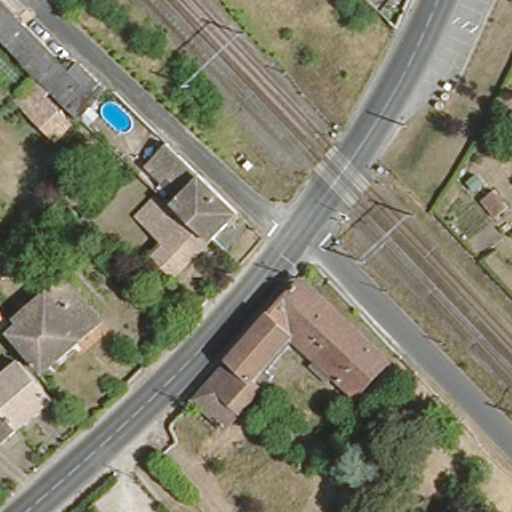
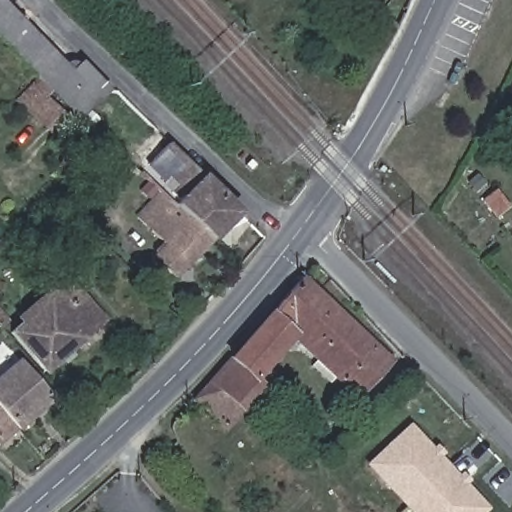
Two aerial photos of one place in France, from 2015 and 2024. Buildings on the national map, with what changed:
unchanged [(94,92),(76,110),(4,35),(0,31),(0,0),(4,0),(11,8),(94,92)]
unchanged [(39,74),(55,91),(46,95),(74,124),(53,144),(14,101),(39,74)]
unchanged [(175,193),(168,185),(174,179),(165,171),(163,174),(148,159),(168,140),(237,211),(212,237),(191,217),(189,219),(169,199),(175,193)]
unchanged [(189,219),(191,217),(212,237),(174,277),(154,258),(153,256),(166,242),(146,224),(140,230),(131,222),(129,220),(159,189),(169,199),(189,219)]
unchanged [(25,257),(18,264),(9,256),(18,249),(25,257)]
unchanged [(314,362),(320,356),(303,341),(295,333),(267,364),(274,371),(242,406),(228,421),(194,390),(241,343),(302,274),(378,343),(392,355),(360,391),(346,378),(339,372),(333,379),(314,362)]
unchanged [(98,317),(42,366),(7,326),(63,278),(98,317)]
unchanged [(0,445),(0,380),(19,365),(50,403),(0,445)]
new [(491,509),(487,512),(417,512),(372,463),(414,425),(491,509)]

